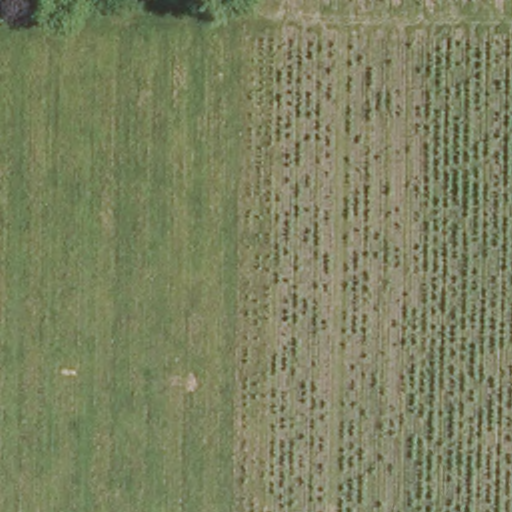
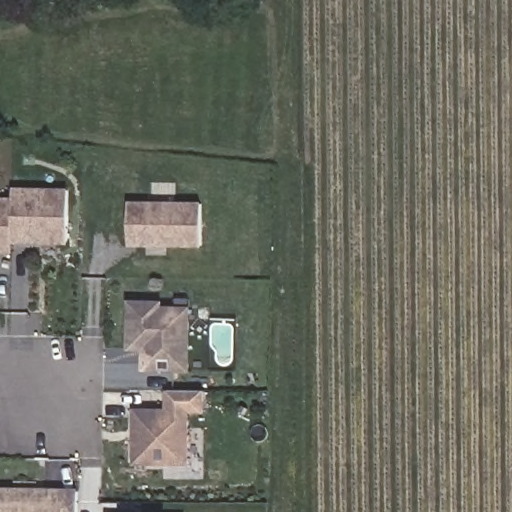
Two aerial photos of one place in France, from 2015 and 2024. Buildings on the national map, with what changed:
new [(13,197),(13,187),(69,189),(67,245),(13,242),(13,197)]
new [(0,197),(13,197),(13,242),(13,253),(0,253),(0,197)]
new [(129,247),(128,200),(202,201),(202,247),(129,247)]
new [(163,300),(162,306),(190,306),(189,372),(141,371),(141,351),(128,351),(128,299),(163,300)]
new [(165,408),(165,389),(205,390),(204,413),(189,413),(189,466),(131,465),(133,407),(165,408)]
new [(0,512),(0,486),(78,488),(78,512),(0,512)]

